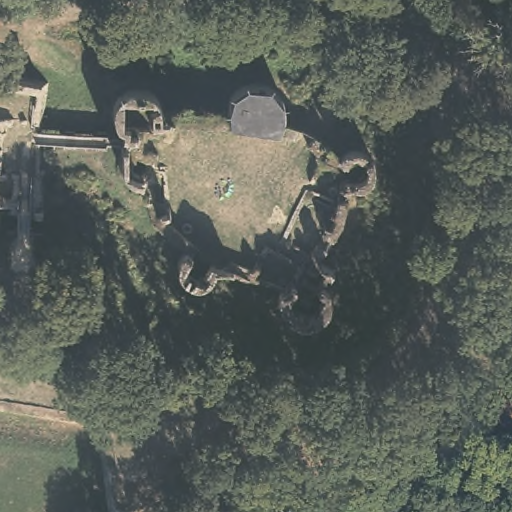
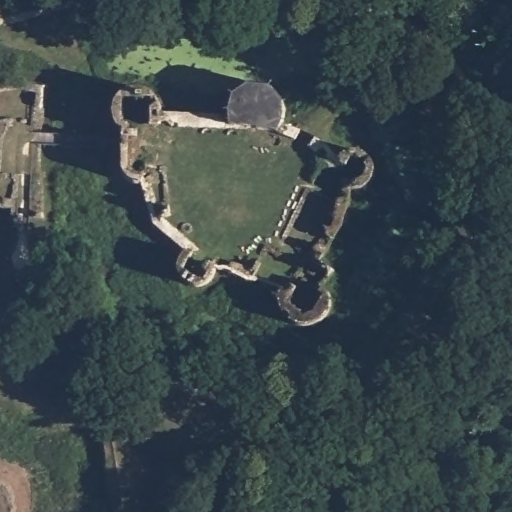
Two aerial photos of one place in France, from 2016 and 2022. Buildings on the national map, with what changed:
unchanged [(275,133),(236,128),(228,113),(234,93),(245,85),(273,88),(282,98),(285,116),(275,133)]

